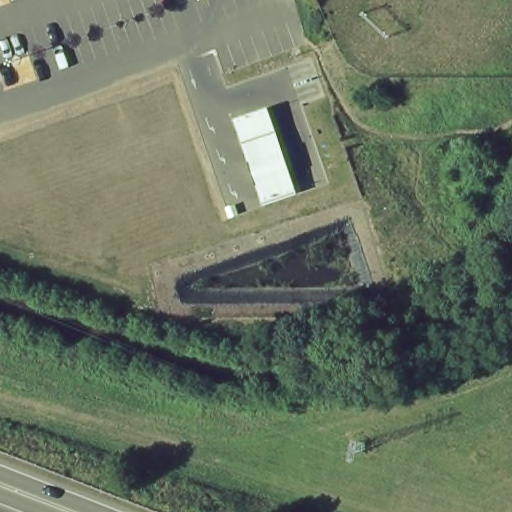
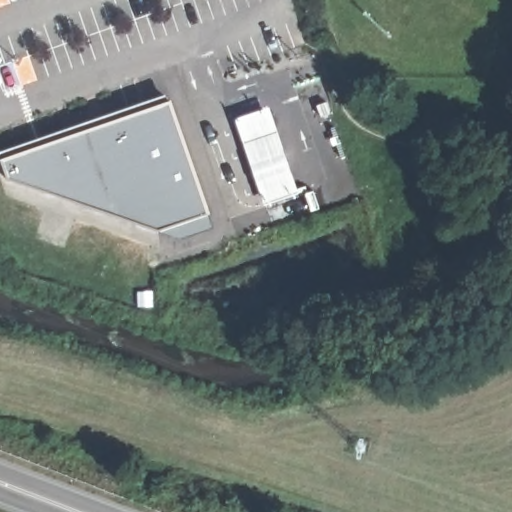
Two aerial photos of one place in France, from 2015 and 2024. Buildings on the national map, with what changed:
new [(166,97),(212,233),(180,242),(7,180),(0,161),(0,150),(166,97)]
unchanged [(303,193),(265,205),(235,117),(272,103),(303,193)]

